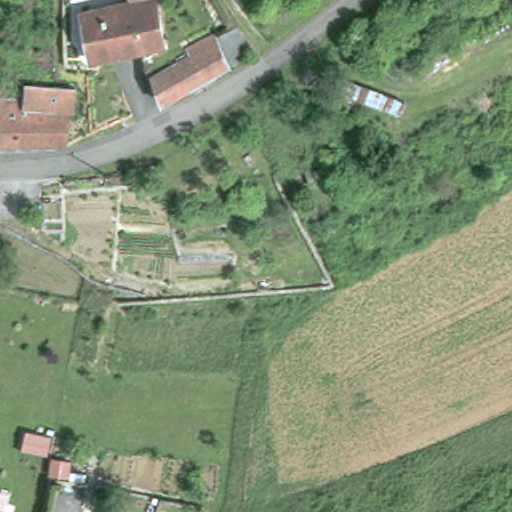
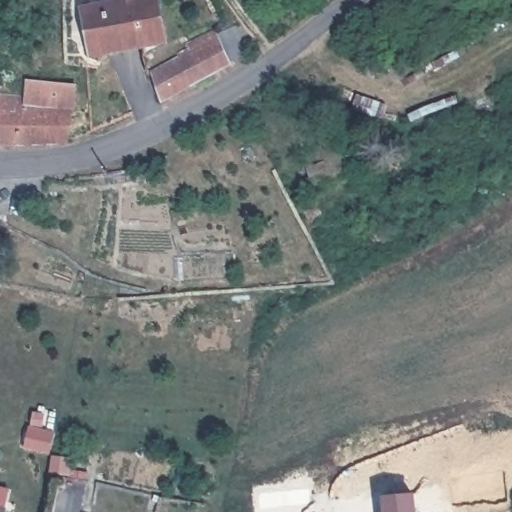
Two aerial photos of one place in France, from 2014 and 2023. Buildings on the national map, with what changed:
unchanged [(94,58),(83,12),(130,1),(130,0),(156,0),(165,43),(94,58)]
unchanged [(218,55),(223,70),(210,78),(200,83),(162,104),(158,105),(150,74),(190,53),(186,47),(203,38),(214,39),(218,55)]
unchanged [(28,78),(75,83),(70,140),(22,143),(20,143),(7,141),(1,140),(0,140),(0,93),(25,97),(28,78)]
new [(412,495),(414,512),(385,512),(383,498),(412,495)]
demolished [(0,512),(0,500),(1,500),(0,512)]
unchanged [(3,512),(0,512),(0,507),(4,508),(3,512)]

